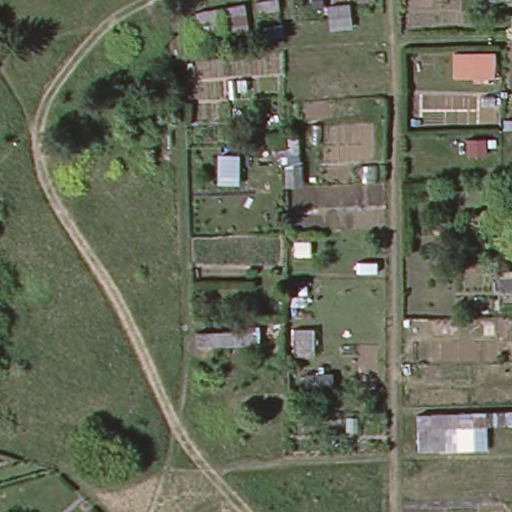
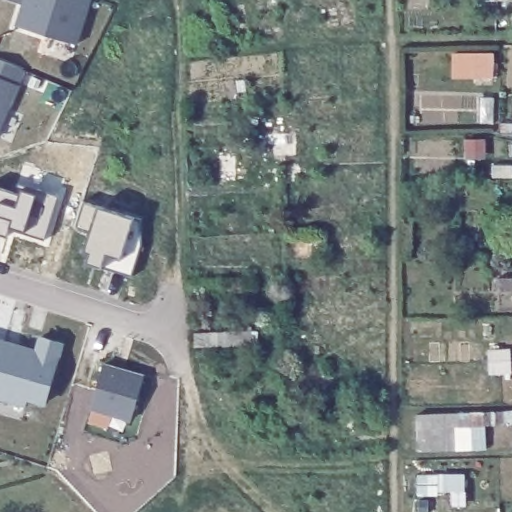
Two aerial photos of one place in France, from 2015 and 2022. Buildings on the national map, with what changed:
new [(90,0),(77,44),(15,26),(24,0),(90,0)]
unchanged [(217,5),(218,17),(196,22),(194,10),(217,5)]
unchanged [(492,51),(492,76),(450,77),(449,51),(492,51)]
new [(25,70),(18,85),(0,127),(0,59),(25,70)]
new [(84,202),(99,207),(132,217),(141,220),(142,244),(131,275),(102,265),(102,267),(87,262),(90,252),(85,250),(90,232),(75,227),(84,202)]
unchanged [(512,287),(498,288),(498,276),(512,275),(512,287)]
new [(35,349),(40,335),(65,342),(60,358),(47,405),(28,400),(25,407),(0,399),(0,339),(35,349)]
unchanged [(257,340),(257,352),(201,355),(200,342),(257,340)]
new [(104,363),(144,375),(130,422),(90,410),(104,363)]
demolished [(227,392),(227,406),(199,407),(199,393),(227,392)]
unchanged [(512,411),(512,428),(475,431),(475,452),(402,455),(397,417),(512,411)]

